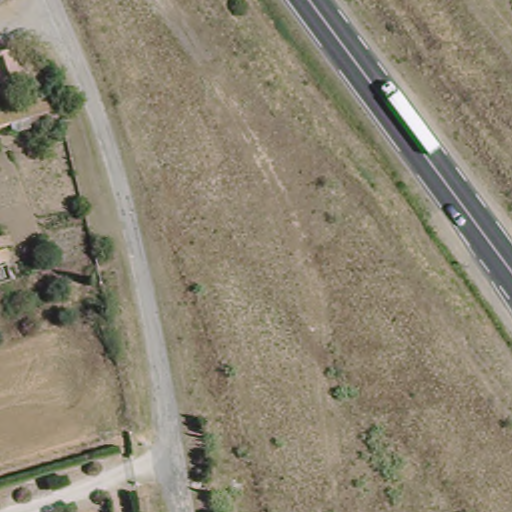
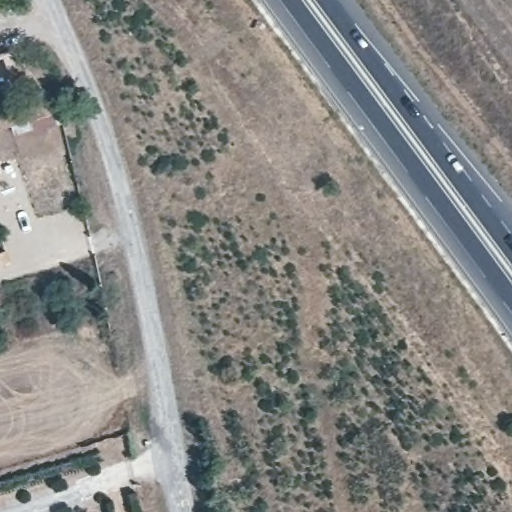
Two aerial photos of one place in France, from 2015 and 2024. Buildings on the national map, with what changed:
unchanged [(61,89),(65,104),(0,130),(0,112),(61,89)]

